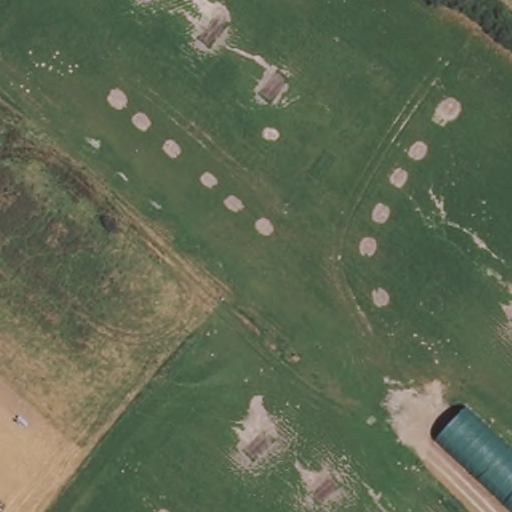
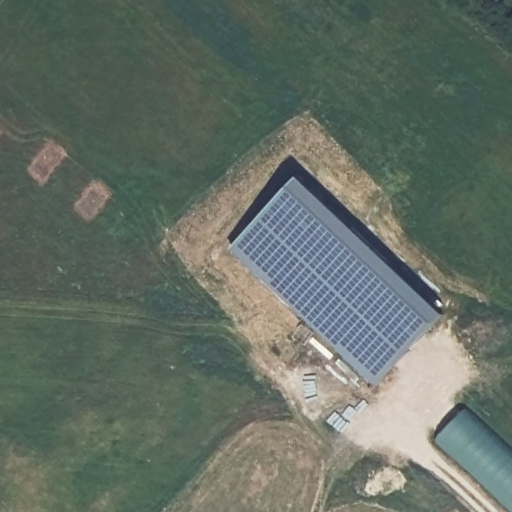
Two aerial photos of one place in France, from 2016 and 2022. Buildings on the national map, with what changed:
new [(293,177),(436,314),(369,384),(226,247),(293,177)]
unchanged [(464,410),(512,454),(512,504),(441,436),(464,410)]

